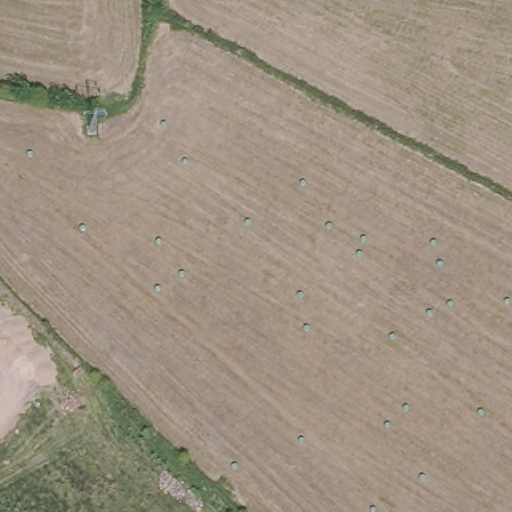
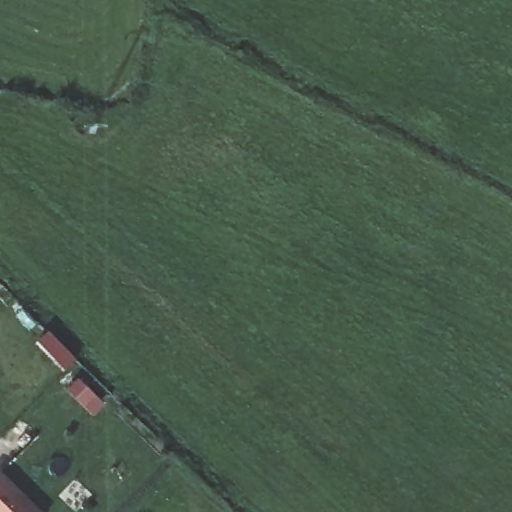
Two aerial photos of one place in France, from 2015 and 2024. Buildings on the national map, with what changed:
new [(0,512),(0,470),(42,512),(0,512)]

